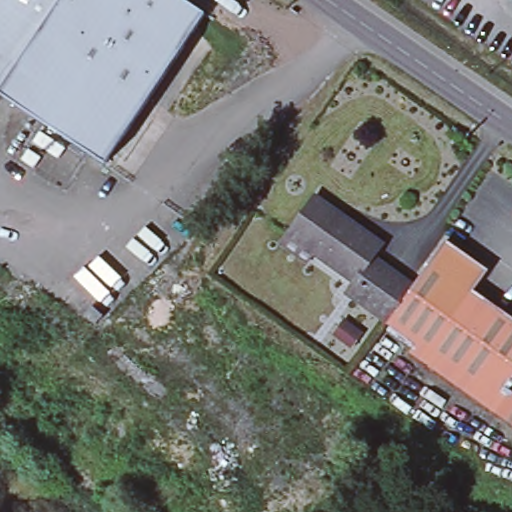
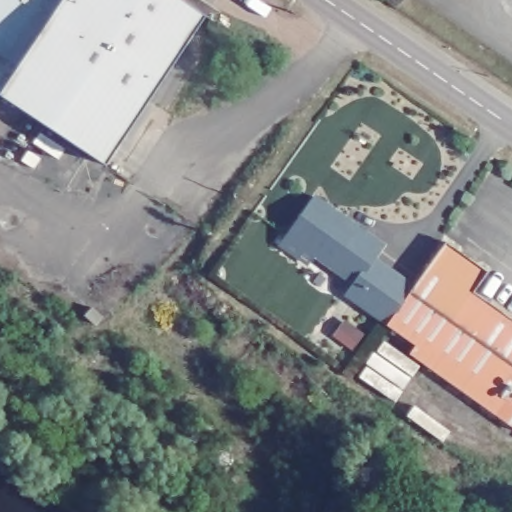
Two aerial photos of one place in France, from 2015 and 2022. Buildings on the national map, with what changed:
unchanged [(0,100),(0,0),(187,0),(205,11),(103,164),(3,100),(0,100)]
unchanged [(373,308),(284,233),(311,196),(380,249),(374,257),(405,285),(373,308)]
unchanged [(447,238),(489,267),(472,287),(512,317),(512,429),(409,351),(414,344),(373,308),(405,285),(407,286),(447,238)]

